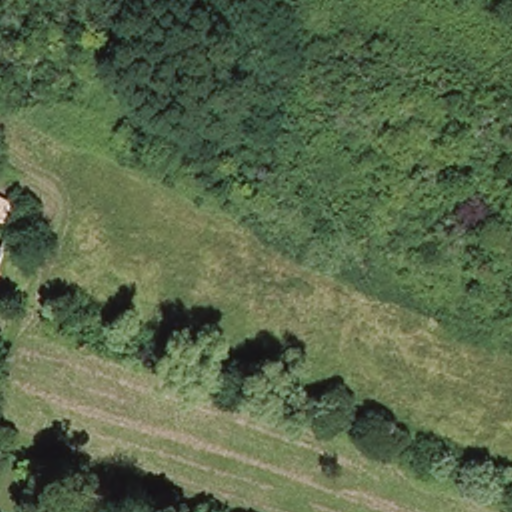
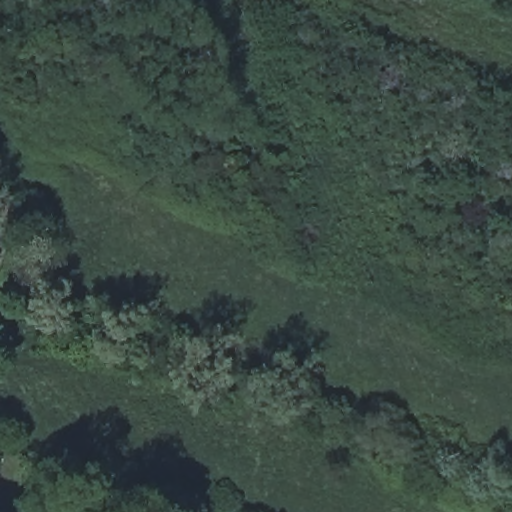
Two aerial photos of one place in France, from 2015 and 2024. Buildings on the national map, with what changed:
[]

